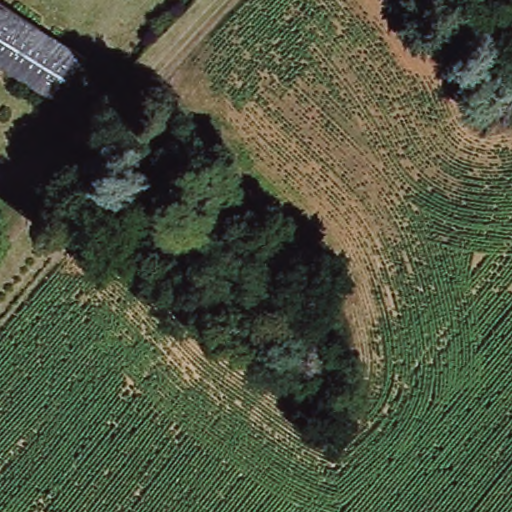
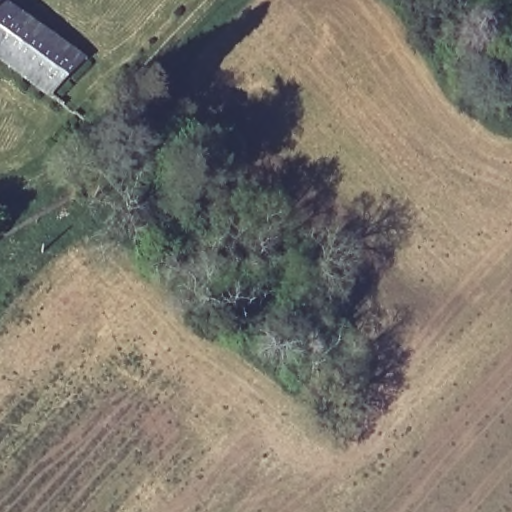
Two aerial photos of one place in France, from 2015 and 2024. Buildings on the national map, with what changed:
unchanged [(60,100),(0,66),(0,6),(85,58),(60,100)]

